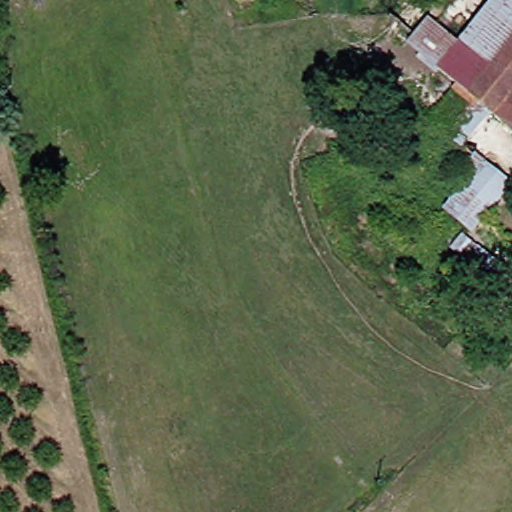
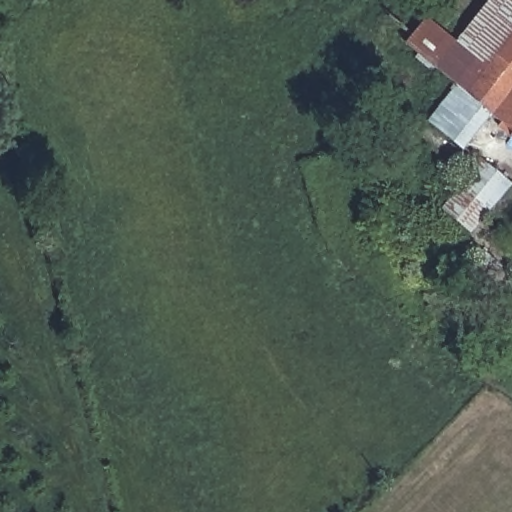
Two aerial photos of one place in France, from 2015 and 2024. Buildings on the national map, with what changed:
unchanged [(496,0),(512,0),(512,67),(507,71),(465,31),(496,0)]
unchanged [(493,106),(489,110),(469,90),(470,84),(442,56),(420,35),(419,27),(442,10),(455,20),(465,31),(507,71),(512,67),(512,124),(493,106)]
new [(455,87),(487,114),(458,147),(424,120),(455,87)]
unchanged [(475,230),(453,210),(470,192),(459,182),(482,161),(492,170),(512,188),(512,192),(475,230)]

